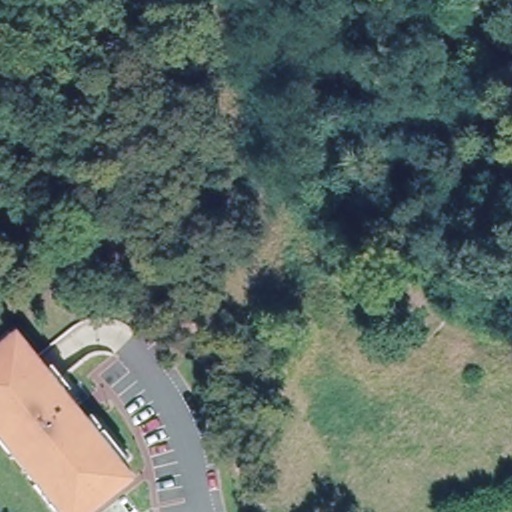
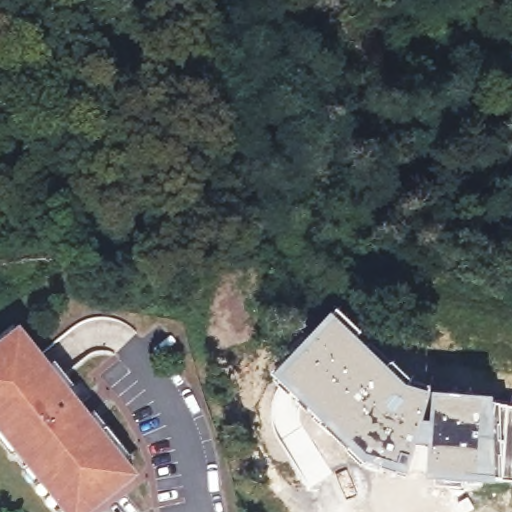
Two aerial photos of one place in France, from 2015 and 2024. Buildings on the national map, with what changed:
demolished [(122,210),(126,223),(106,229),(102,217),(122,210)]
new [(338,312),(364,337),(359,342),(390,370),(394,366),(412,384),(409,387),(432,396),(413,473),(412,476),(376,469),(362,463),(326,433),(272,378),(338,312)]
unchanged [(28,456),(20,462),(10,449),(8,448),(16,441),(0,421),(0,350),(22,332),(28,340),(75,399),(95,424),(103,418),(138,462),(130,468),(141,482),(103,512),(60,512),(30,475),(38,469),(28,456)]
new [(512,402),(512,483),(469,485),(425,480),(426,476),(413,473),(432,396),(512,402)]

